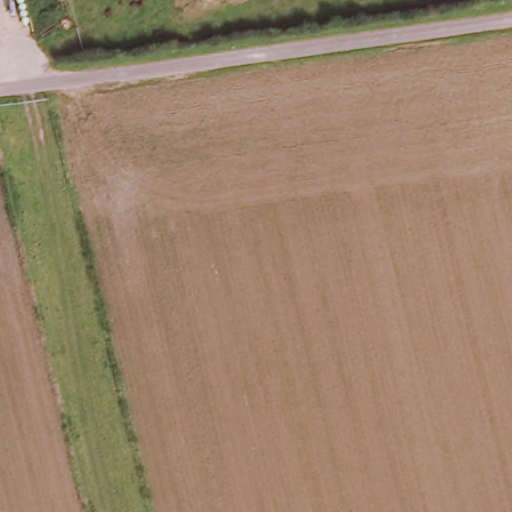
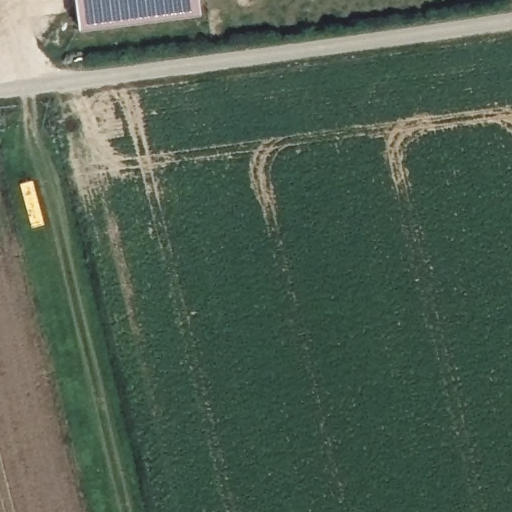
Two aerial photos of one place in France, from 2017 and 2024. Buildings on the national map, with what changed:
new [(80,29),(76,0),(198,0),(200,14),(80,29)]

